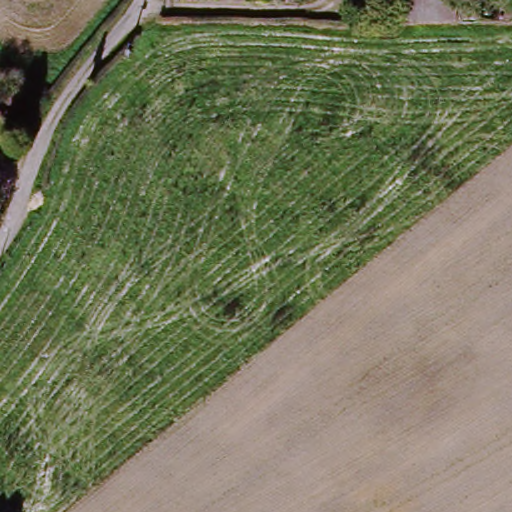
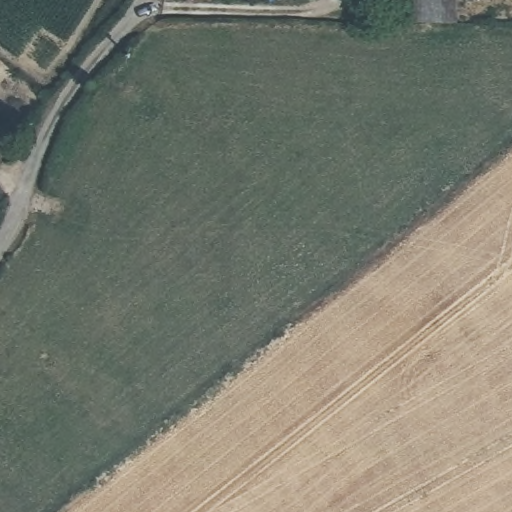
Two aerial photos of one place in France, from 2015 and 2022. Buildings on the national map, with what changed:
unchanged [(430,0),(455,0),(455,4),(456,29),(399,28),(398,4),(430,4),(430,0)]

